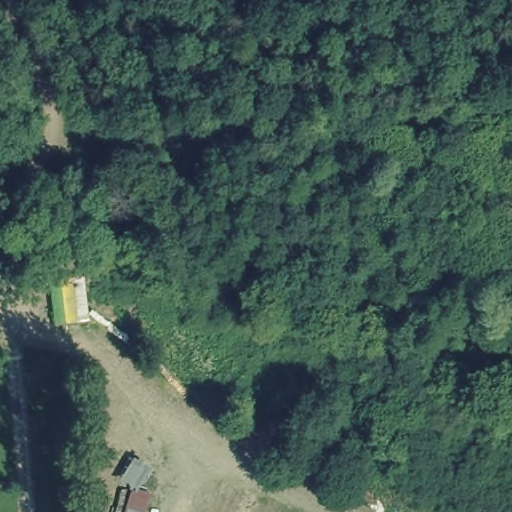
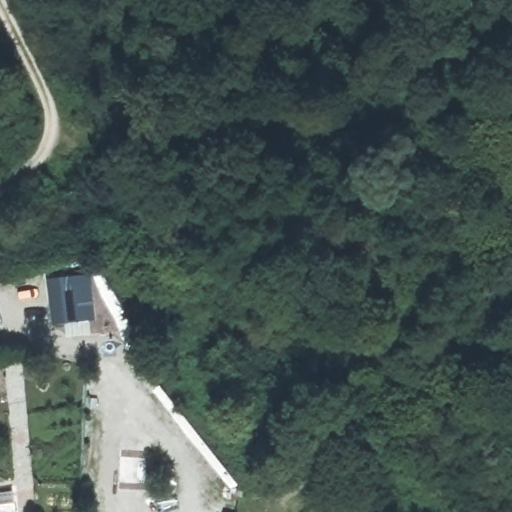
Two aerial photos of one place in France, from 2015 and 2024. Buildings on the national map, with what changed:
new [(54,324),(49,275),(85,273),(90,322),(54,324)]

